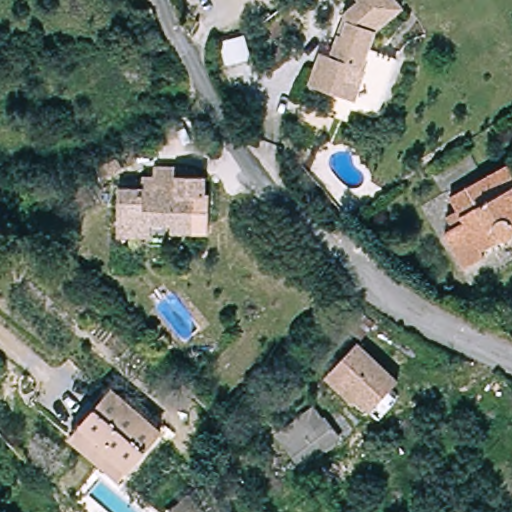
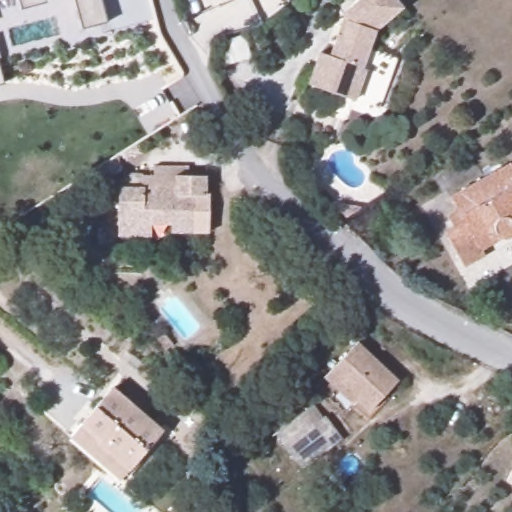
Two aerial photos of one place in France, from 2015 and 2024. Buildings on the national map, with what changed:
new [(20,9),(18,0),(47,0),(48,2),(20,9)]
new [(82,29),(76,0),(101,0),(107,22),(82,29)]
unchanged [(179,0),(203,0),(181,5),(179,0)]
unchanged [(338,99),(303,86),(314,57),(323,60),(331,38),(338,18),(353,6),(348,0),(388,0),(397,11),(369,34),(356,72),(349,69),(344,82),(356,86),(350,103),(338,99)]
new [(0,84),(0,70),(4,82),(0,84)]
unchanged [(512,166),(512,240),(510,241),(507,241),(503,241),(500,240),(497,238),(495,236),(477,246),(482,255),(462,266),(443,232),(455,225),(449,214),(457,209),(450,196),(510,162),(512,166)]
unchanged [(147,190),(147,177),(157,176),(157,168),(193,168),(194,178),(211,178),(210,198),(200,198),(200,236),(176,236),(176,228),(159,228),(159,239),(123,240),(123,190),(147,190)]
unchanged [(352,346),(389,382),(361,411),(326,374),(352,346)]
unchanged [(112,390),(157,432),(116,479),(71,436),(112,390)]
unchanged [(340,438),(300,468),(276,438),(304,415),(314,428),(326,420),(340,438)]

